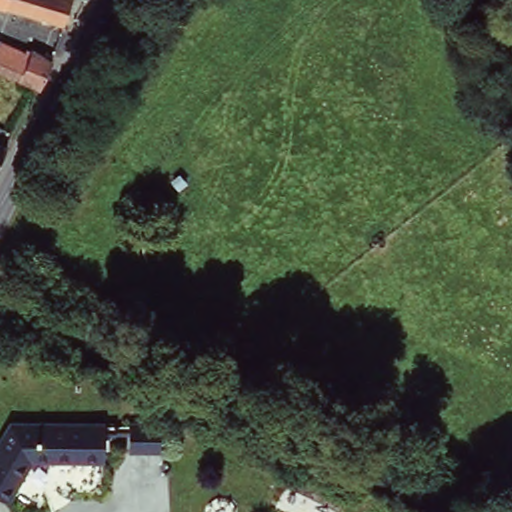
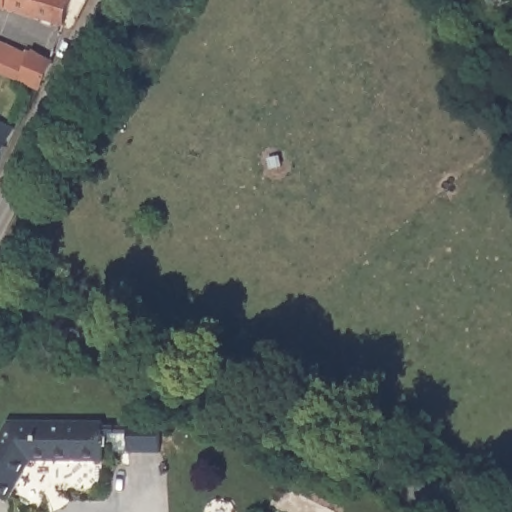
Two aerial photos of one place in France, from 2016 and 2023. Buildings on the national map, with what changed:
unchanged [(0,1),(1,0),(67,0),(57,20),(0,1)]
unchanged [(33,87),(0,72),(0,44),(26,55),(27,52),(43,57),(47,59),(33,87)]
unchanged [(0,153),(0,134),(8,138),(0,153)]
unchanged [(106,425),(105,464),(33,463),(7,502),(0,498),(0,440),(11,422),(106,425)]
unchanged [(130,425),(162,426),(161,456),(129,455),(130,425)]

